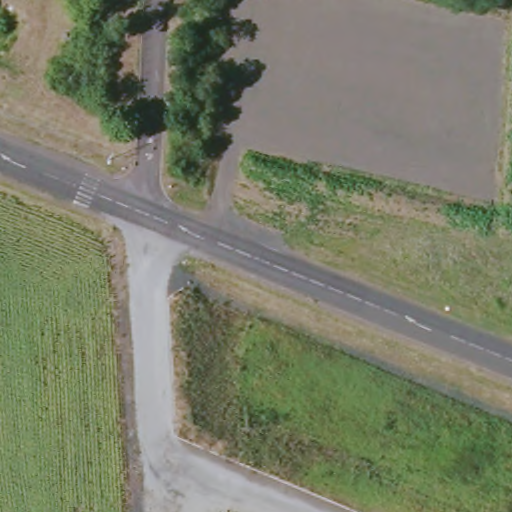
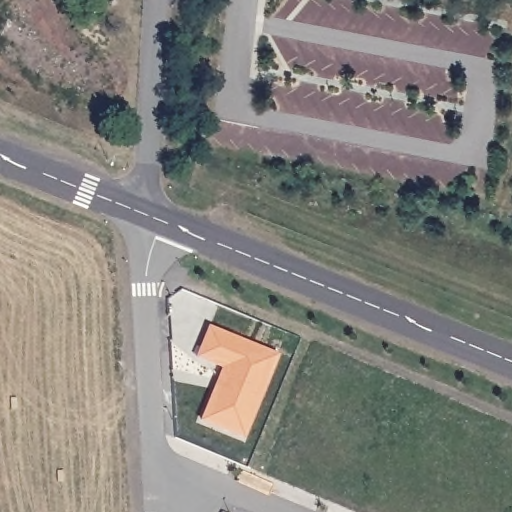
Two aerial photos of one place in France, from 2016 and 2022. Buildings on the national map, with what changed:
new [(244,444),(195,419),(218,370),(191,358),(208,324),(281,353),(244,444)]

